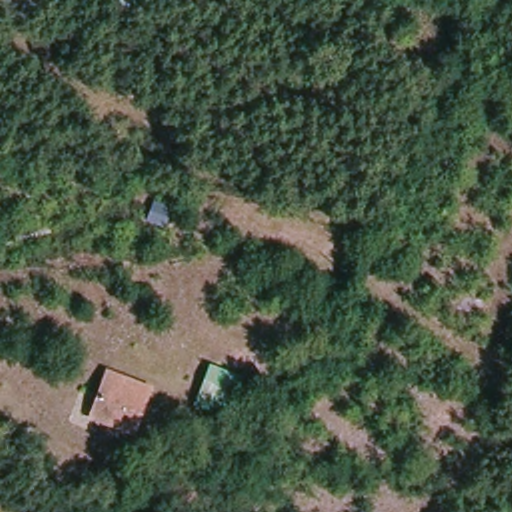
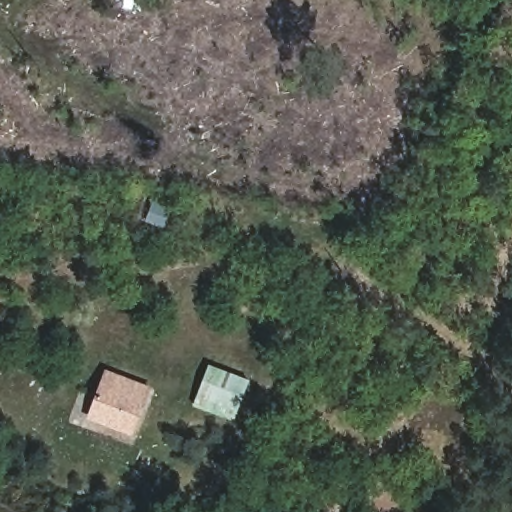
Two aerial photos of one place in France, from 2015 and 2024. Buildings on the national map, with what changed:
unchanged [(192,362),(221,373),(206,408),(178,400),(192,362)]
unchanged [(135,433),(90,418),(105,378),(149,394),(135,433)]

